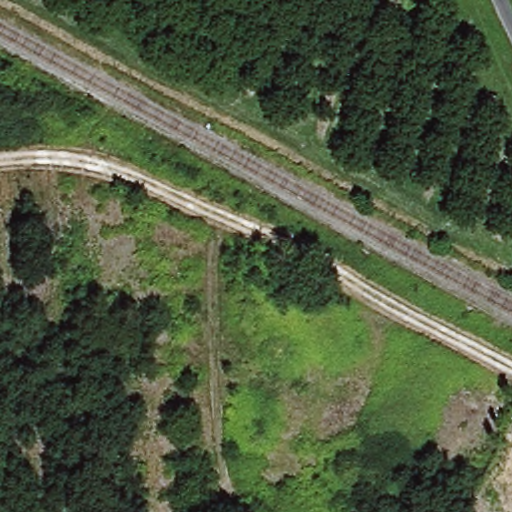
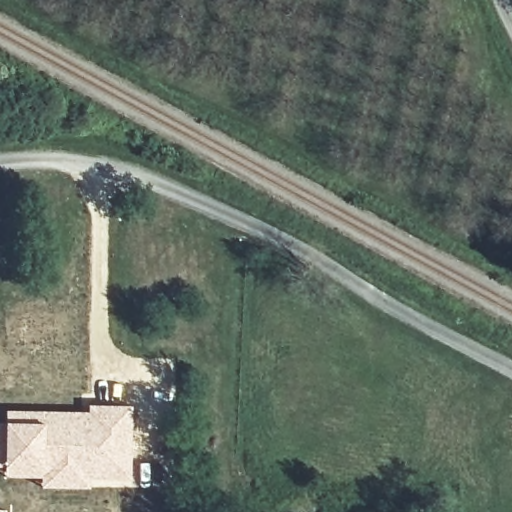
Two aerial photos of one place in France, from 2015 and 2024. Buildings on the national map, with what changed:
new [(4,421),(4,409),(86,410),(87,403),(131,404),(131,486),(40,487),(40,478),(4,477),(3,467),(0,467),(0,420),(4,421)]
new [(6,509),(6,512),(0,512),(0,508),(6,509)]

